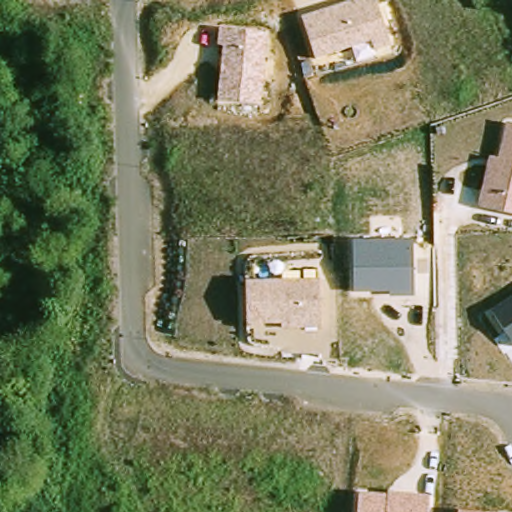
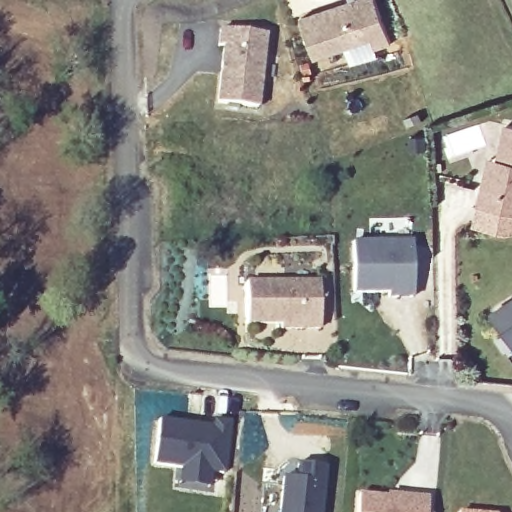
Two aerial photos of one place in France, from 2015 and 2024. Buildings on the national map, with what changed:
unchanged [(356,0),(377,0),(377,1),(391,47),(373,52),(371,42),(315,60),(301,19),(353,1),(356,0)]
unchanged [(261,106),(218,101),(223,49),(217,48),(218,27),(268,31),(261,106)]
unchanged [(512,216),(475,207),(489,157),(500,159),(508,124),(512,124),(512,216)]
unchanged [(414,240),(415,297),(390,298),(390,293),(352,293),(352,241),(414,240)]
unchanged [(320,281),(321,328),(247,330),(247,282),(320,281)]
unchanged [(512,301),(512,347),(493,312),(512,301)]
new [(158,420),(214,426),(214,419),(230,421),(228,445),(225,471),(154,463),(158,420)]
new [(283,477),(296,478),(298,463),(325,466),(321,512),(279,512),(283,477)]
unchanged [(387,495),(387,490),(428,495),(427,512),(356,512),(357,495),(387,495)]
unchanged [(457,511),(468,512),(457,512),(457,511)]

